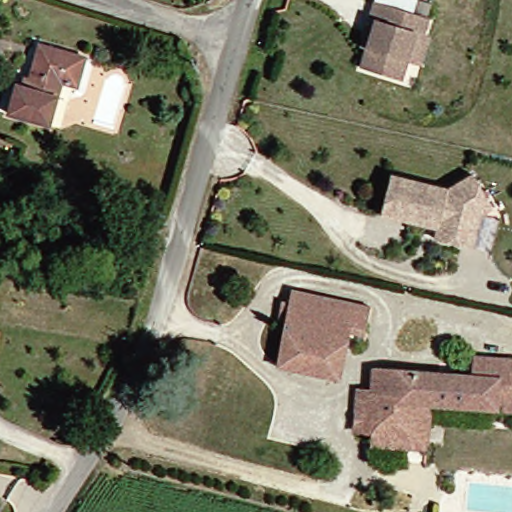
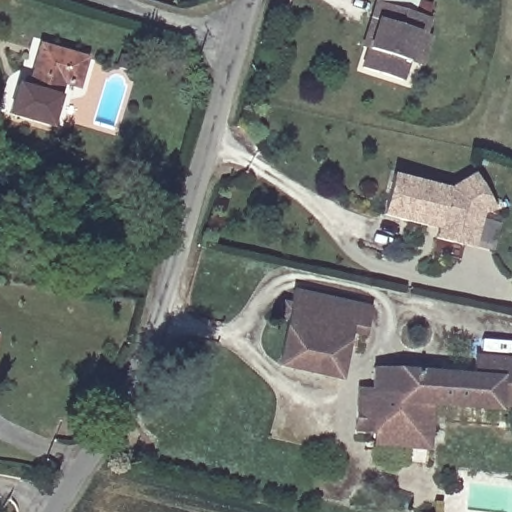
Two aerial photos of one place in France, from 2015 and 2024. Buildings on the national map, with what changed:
unchanged [(423,67),(411,63),(405,82),(365,70),(371,51),(366,49),(375,21),(380,4),(432,21),(427,37),(433,39),(423,67)]
unchanged [(81,90),(63,86),(49,126),(7,114),(18,84),(33,87),(47,46),(92,61),(81,90)]
unchanged [(385,217),(394,177),(450,191),(475,177),(488,201),(494,211),(482,217),(475,249),(463,246),(437,240),(440,231),(428,228),(385,217)]
unchanged [(354,303),(340,377),(277,367),(293,292),(354,303)]
unchanged [(512,358),(512,413),(498,412),(433,407),(429,450),(374,447),(374,434),(353,432),(356,387),(373,389),(374,367),(473,373),(475,354),(512,358)]

